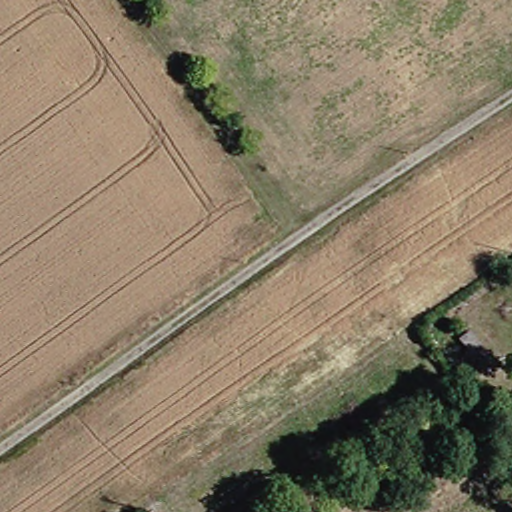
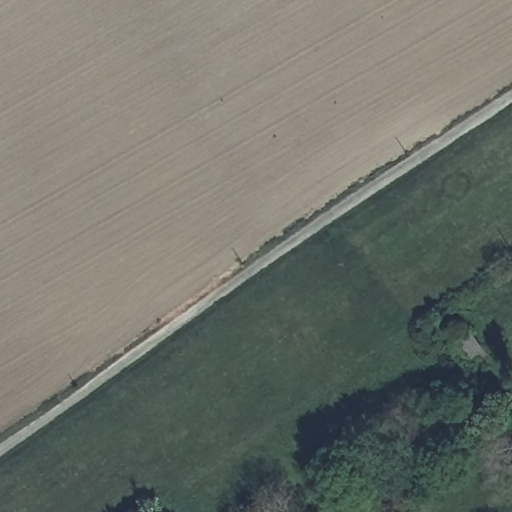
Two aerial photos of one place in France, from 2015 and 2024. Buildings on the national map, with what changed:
unchanged [(480,348),(470,354),(461,341),(470,334),(480,348)]

